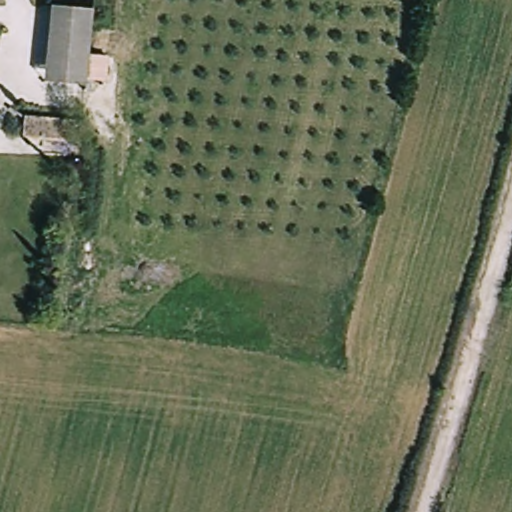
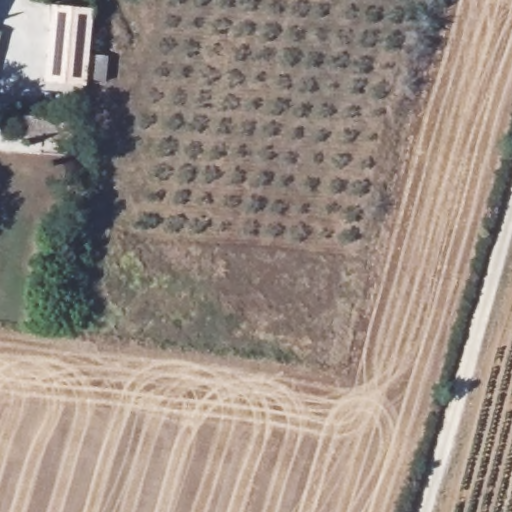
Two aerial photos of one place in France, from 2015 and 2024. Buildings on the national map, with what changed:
unchanged [(84,86),(43,82),(50,8),(91,11),(84,86)]
unchanged [(24,138),(25,120),(75,124),(73,142),(24,138)]

